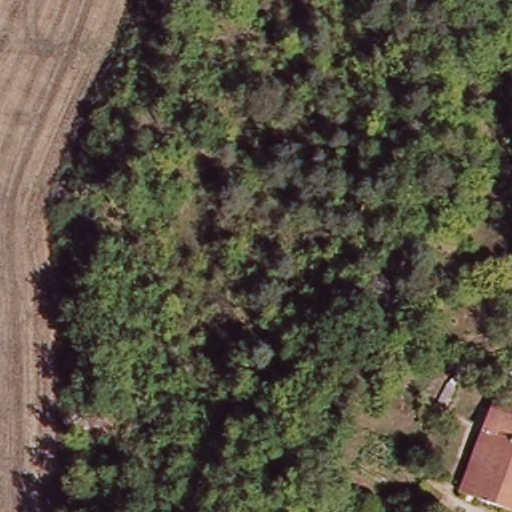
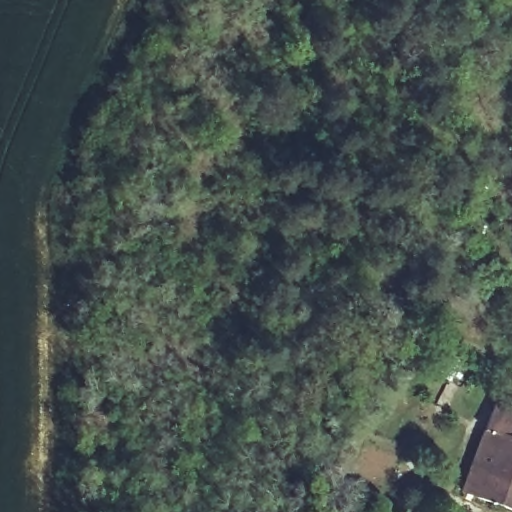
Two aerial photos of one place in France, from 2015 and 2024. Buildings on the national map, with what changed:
unchanged [(485,430),(494,408),(512,416),(512,509),(475,492),(460,486),(485,430)]

